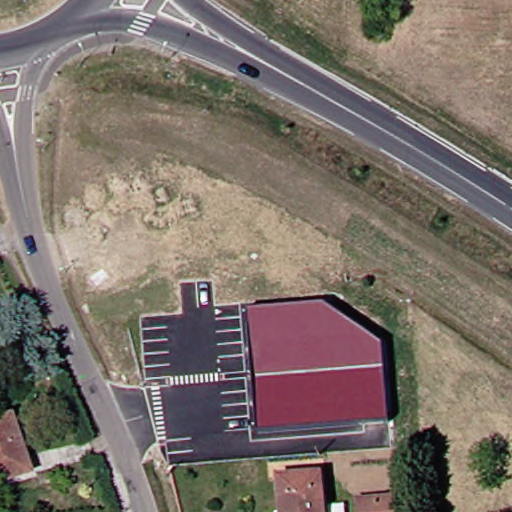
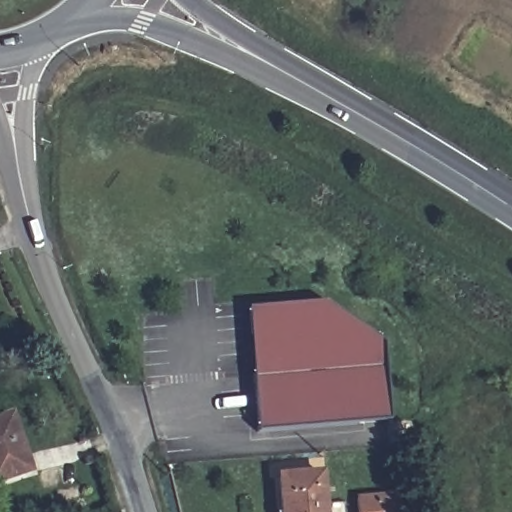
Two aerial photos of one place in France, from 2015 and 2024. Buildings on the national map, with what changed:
unchanged [(248,310),(324,304),(381,344),(388,421),(257,430),(248,310)]
unchanged [(31,473),(0,483),(0,420),(11,417),(31,473)]
unchanged [(270,478),(312,474),(316,512),(273,512),(270,478)]
unchanged [(398,512),(360,512),(358,500),(397,496),(398,512)]

